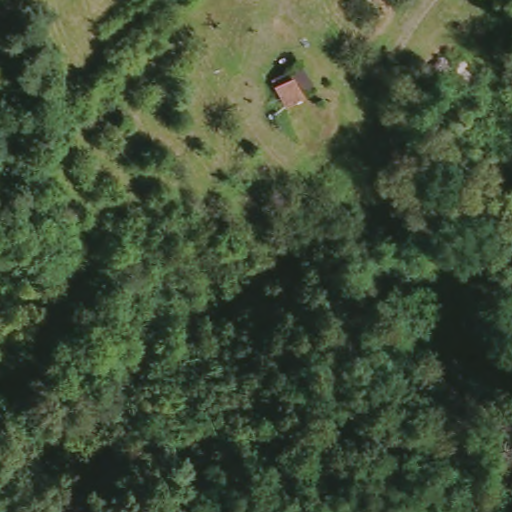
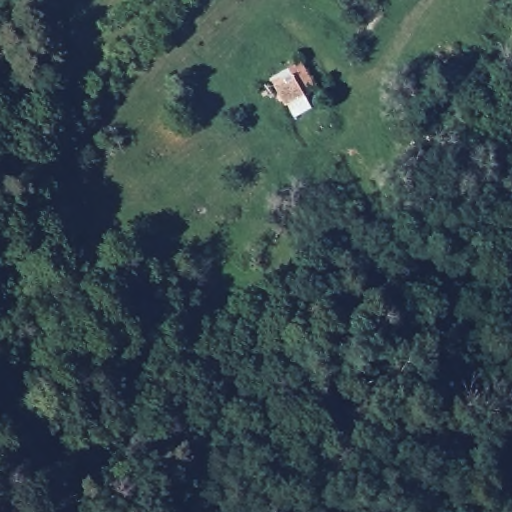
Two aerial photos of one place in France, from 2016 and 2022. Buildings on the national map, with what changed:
unchanged [(318,87),(305,95),(287,106),(275,85),(272,79),(303,61),(318,87)]

